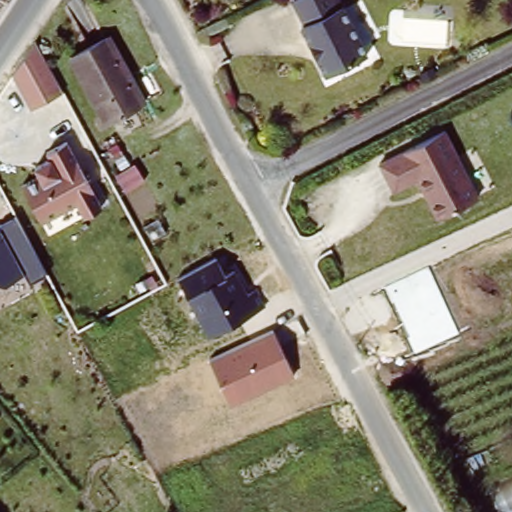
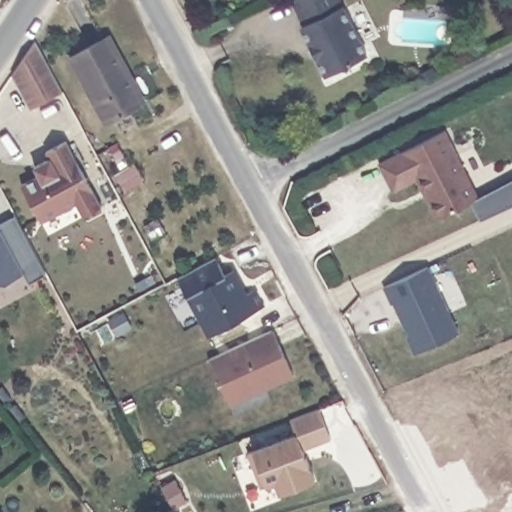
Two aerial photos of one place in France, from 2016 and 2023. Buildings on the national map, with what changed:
unchanged [(320,76),(295,27),(300,24),(289,0),(336,0),(363,55),(320,76)]
unchanged [(132,107),(97,127),(62,62),(98,42),(132,107)]
unchanged [(30,44),(58,96),(26,112),(7,76),(30,44)]
unchanged [(445,132),(459,157),(457,157),(478,200),(439,220),(419,181),(394,193),(380,166),(445,132)]
unchanged [(80,220),(72,206),(37,225),(18,187),(35,179),(32,170),(47,161),(42,155),(62,144),(96,211),(80,220)]
new [(480,220),(472,202),(478,200),(477,197),(512,179),(512,205),(480,220)]
unchanged [(15,215),(47,273),(31,282),(24,270),(0,224),(15,215)]
unchanged [(7,287),(2,286),(0,283),(0,224),(24,270),(7,287)]
unchanged [(217,257),(225,276),(235,270),(246,291),(255,287),(265,306),(208,336),(178,278),(217,257)]
unchanged [(417,355),(410,337),(411,336),(396,302),(393,303),(386,287),(432,266),(463,332),(417,355)]
unchanged [(272,332),(295,377),(230,405),(210,361),(272,332)]
new [(307,451),(319,480),(280,496),(275,483),(264,487),(250,449),(296,432),(290,420),(322,408),(334,440),(307,451)]
new [(175,479),(186,499),(172,507),(162,487),(175,479)]
unchanged [(487,496),(512,484),(512,512),(494,512),(487,496)]

